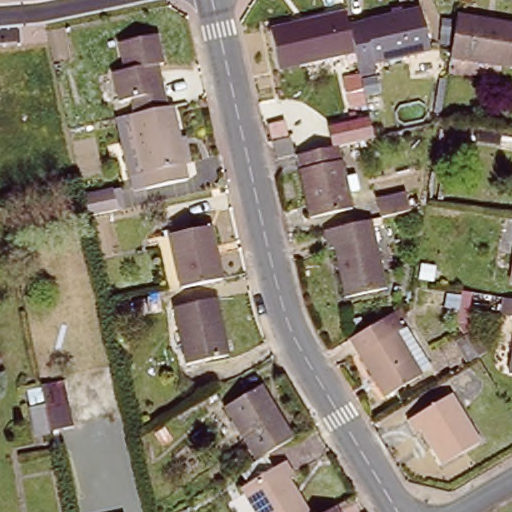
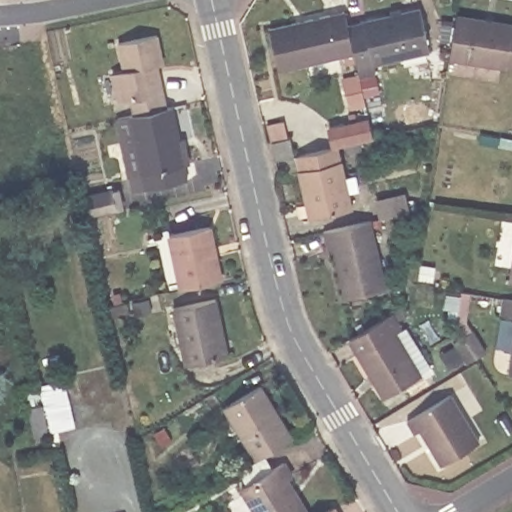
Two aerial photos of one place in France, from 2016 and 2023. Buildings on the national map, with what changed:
unchanged [(347,25),(420,9),(429,52),(377,64),(379,73),(360,78),(354,53),(347,25)]
unchanged [(457,11),(512,20),(512,64),(450,54),(457,11)]
unchanged [(282,70),(272,29),(345,12),(347,25),(354,53),(282,70)]
unchanged [(167,102),(132,110),(129,95),(117,97),(112,72),(126,68),(121,45),(157,37),(162,61),(158,61),(164,85),(167,102)]
unchanged [(133,173),(144,170),(131,110),(132,110),(167,102),(172,101),(188,174),(147,184),(136,186),(133,173)]
unchanged [(274,157),(270,140),(289,136),(293,153),(274,157)]
unchanged [(301,153),(337,145),(354,207),(312,218),(295,154),(301,153)]
unchanged [(89,218),(84,194),(114,187),(120,211),(89,218)]
unchanged [(376,201),(405,195),(408,212),(380,218),(376,201)]
unchanged [(374,220),(389,287),(349,296),(338,247),(331,249),(327,230),(374,220)]
unchanged [(182,284),(169,232),(210,222),(222,275),(182,284)]
unchanged [(510,283),(512,269),(512,283),(510,283)]
unchanged [(221,297),(232,353),(191,361),(180,304),(221,297)]
unchanged [(512,300),(512,315),(506,314),(509,299),(512,300)]
unchanged [(385,395),(349,338),(391,312),(401,327),(405,325),(427,361),(417,368),(420,372),(385,395)]
unchanged [(470,362),(457,343),(464,339),(474,333),(486,352),(477,358),(470,362)]
unchanged [(65,379),(74,426),(51,430),(52,440),(44,442),(42,436),(36,437),(30,406),(27,389),(42,387),(41,384),(65,379)]
unchanged [(262,458),(231,406),(267,385),(297,436),(262,458)]
unchanged [(421,425),(416,428),(410,419),(452,393),(481,440),(444,463),(421,425)]
unchanged [(290,462),(297,475),(292,478),(312,512),(263,512),(249,487),(290,462)]
unchanged [(327,512),(340,504),(344,512),(327,512)]

